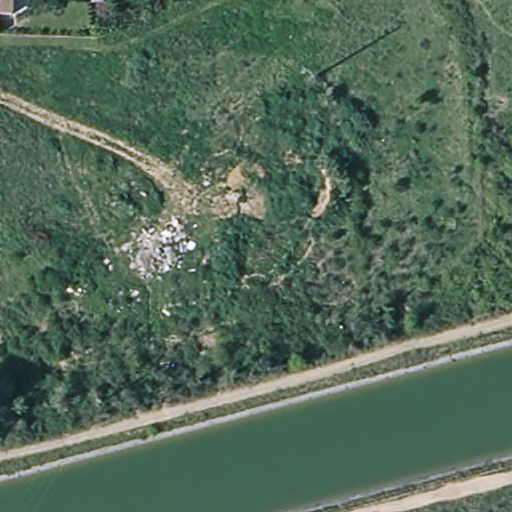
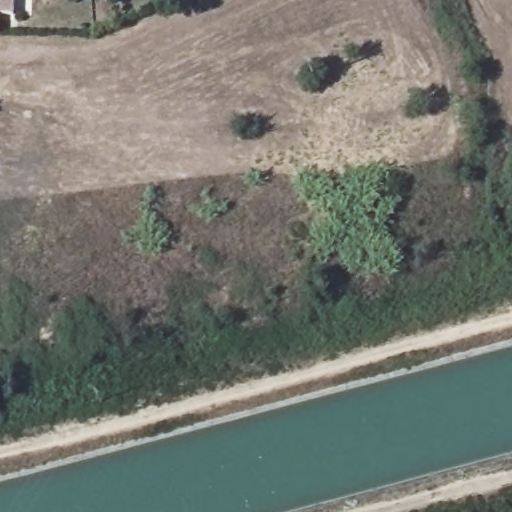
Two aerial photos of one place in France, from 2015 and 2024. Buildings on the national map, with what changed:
unchanged [(12,14),(0,14),(0,0),(12,0),(12,14)]

